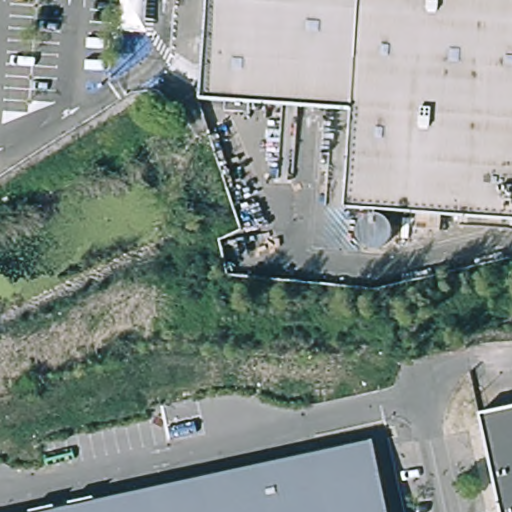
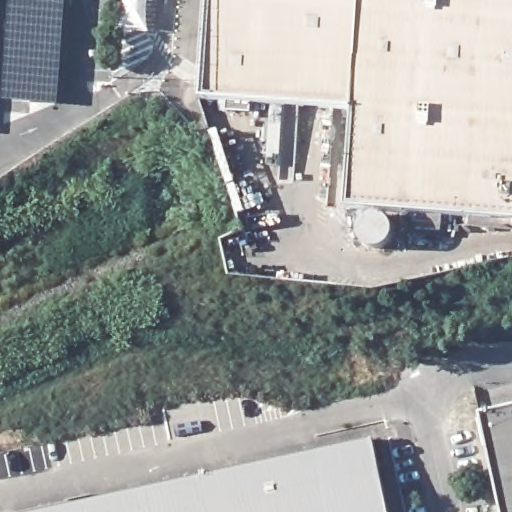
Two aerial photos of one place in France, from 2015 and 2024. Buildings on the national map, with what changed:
new [(58,105),(6,101),(13,0),(64,0),(58,105)]
unchanged [(353,111),(192,100),(199,0),(360,0),(353,111)]
unchanged [(346,209),(353,111),(360,0),(512,0),(512,221),(346,209)]
unchanged [(380,215),(381,215),(384,216),(385,217),(387,217),(391,220),(393,223),(394,226),(394,228),(395,231),(395,233),(394,235),(394,238),(393,241),(389,245),(386,248),(384,249),(382,250),(380,250),(377,250),(374,251),(371,250),(369,249),(366,248),(365,246),(363,244),(361,242),(360,239),(359,234),(359,230),(360,227),(361,223),(365,219),(368,217),(371,215),(375,214),(377,214),(380,215)]
unchanged [(512,403),(512,512),(498,512),(478,410),(479,410),(512,403)]
unchanged [(388,512),(41,512),(373,440),(388,512)]

